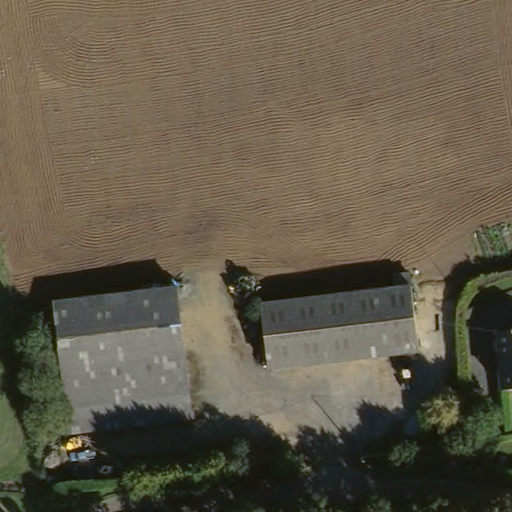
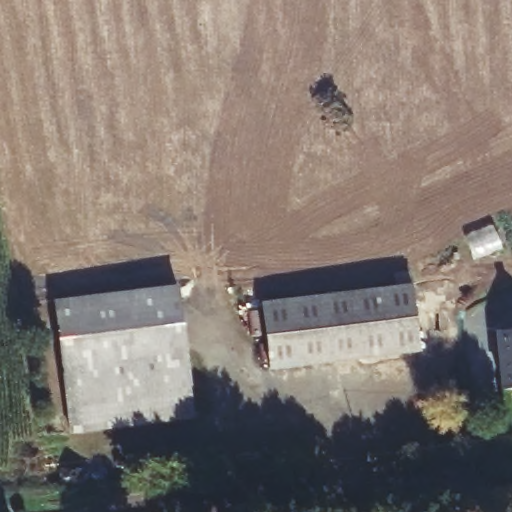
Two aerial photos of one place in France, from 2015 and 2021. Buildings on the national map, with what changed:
unchanged [(418,349),(272,364),(266,304),(411,286),(418,349)]
unchanged [(55,308),(180,293),(194,424),(70,438),(55,308)]
unchanged [(494,335),(512,334),(512,393),(499,394),(494,335)]

